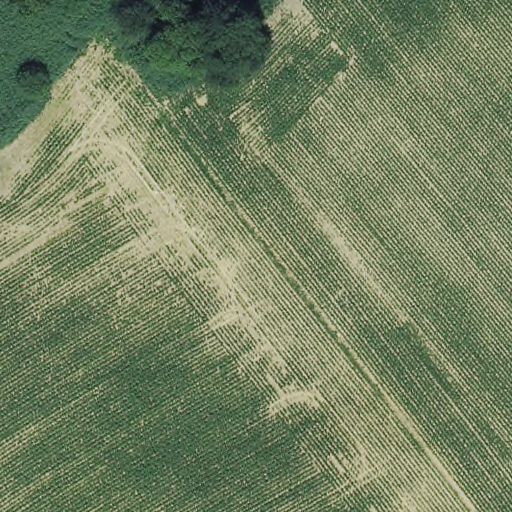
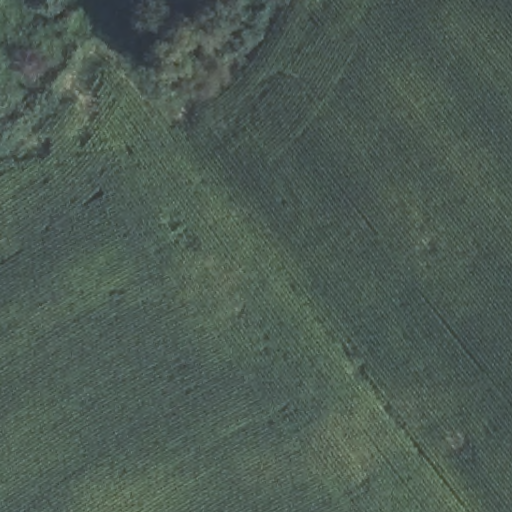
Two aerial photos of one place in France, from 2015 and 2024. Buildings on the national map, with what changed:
[]

